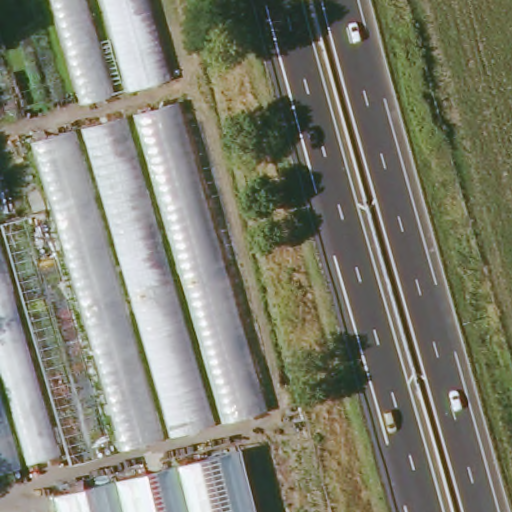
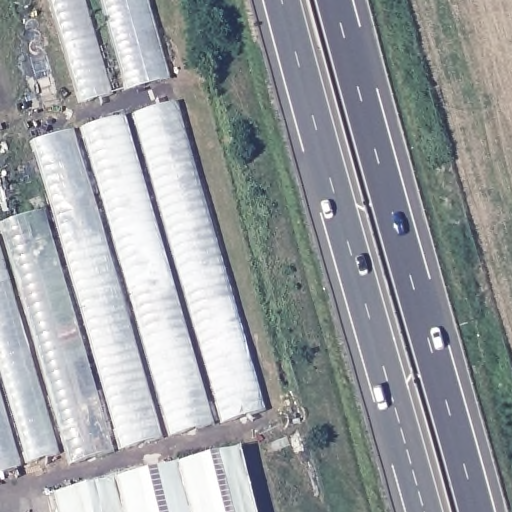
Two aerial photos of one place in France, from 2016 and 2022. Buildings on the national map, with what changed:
unchanged [(172,80),(82,104),(51,0),(149,0),(172,80)]
unchanged [(33,144),(178,104),(269,410),(72,465),(2,225),(53,210),(33,144)]
unchanged [(28,466),(0,368),(0,246),(59,456),(28,466)]
unchanged [(0,482),(0,388),(27,475),(0,482)]
unchanged [(240,450),(255,512),(57,512),(53,496),(240,450)]

